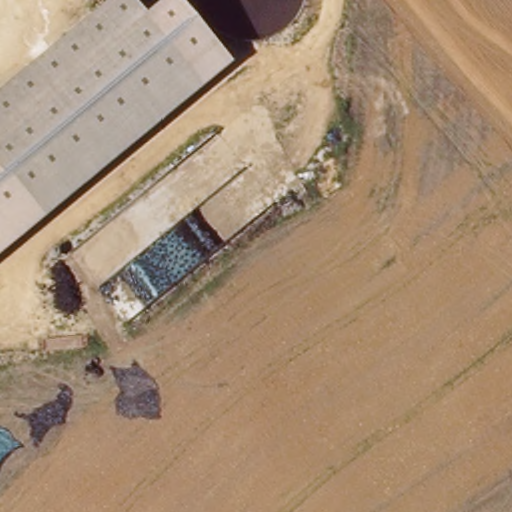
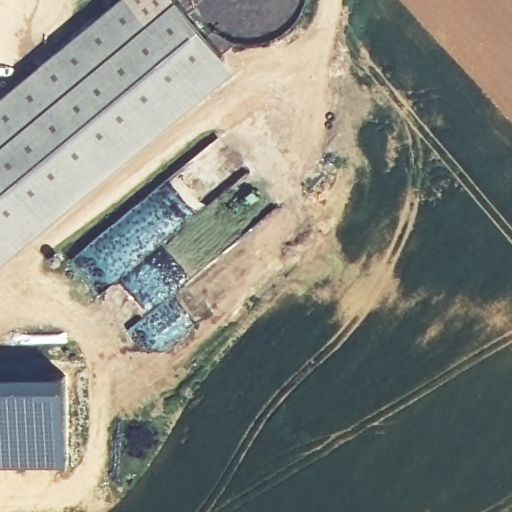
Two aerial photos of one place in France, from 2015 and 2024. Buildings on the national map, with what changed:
unchanged [(151,21),(178,0),(236,70),(0,267),(0,100),(120,0),(133,0),(151,21)]
new [(70,375),(69,388),(68,465),(0,465),(0,375),(70,375)]

